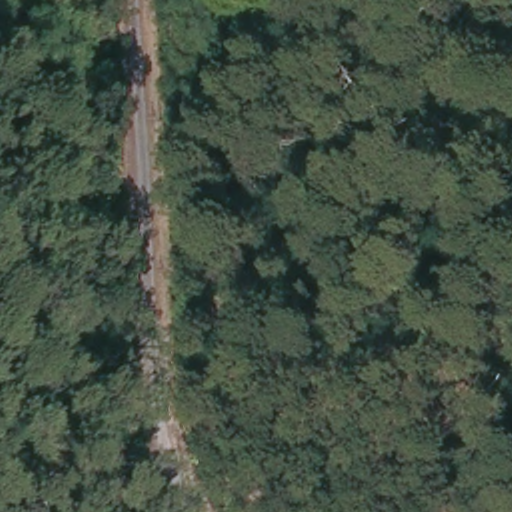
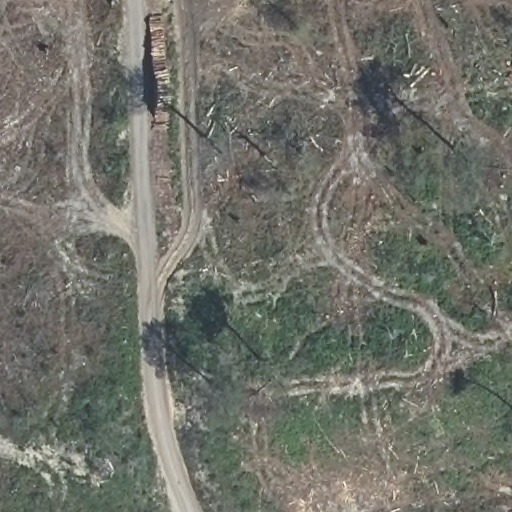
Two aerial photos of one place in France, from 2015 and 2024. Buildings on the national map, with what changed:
unchanged [(99,65),(101,101),(83,101),(80,20),(118,19),(120,65),(99,65)]

